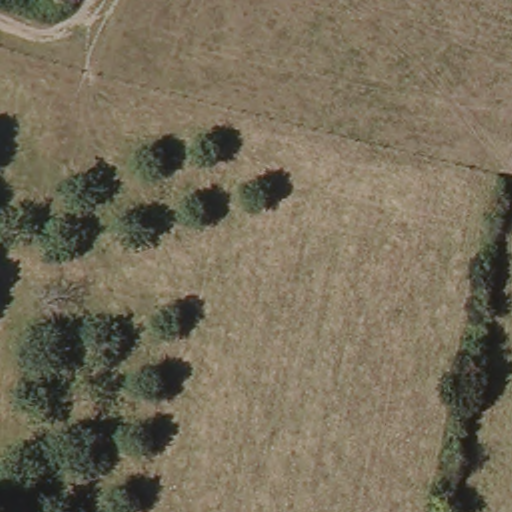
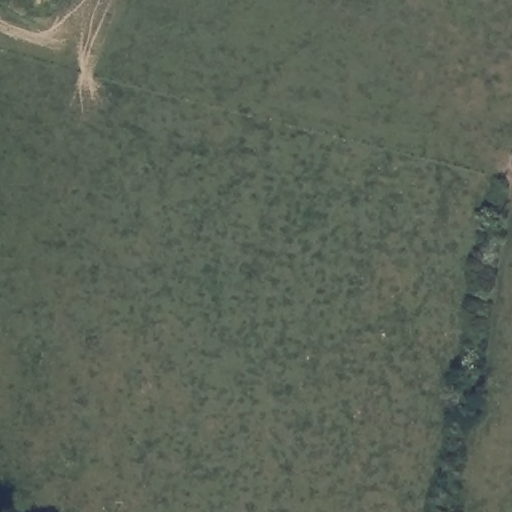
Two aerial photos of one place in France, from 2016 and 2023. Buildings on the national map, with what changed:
[]

